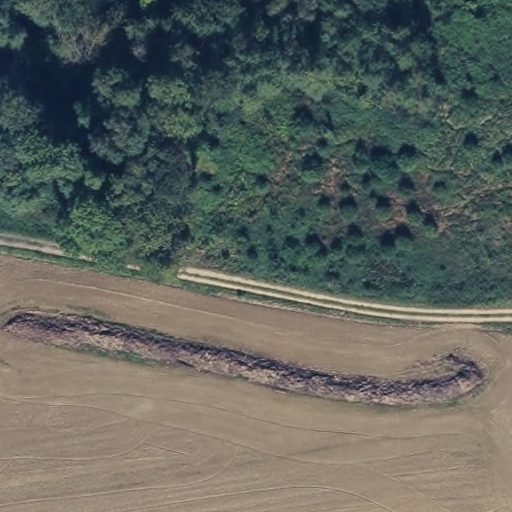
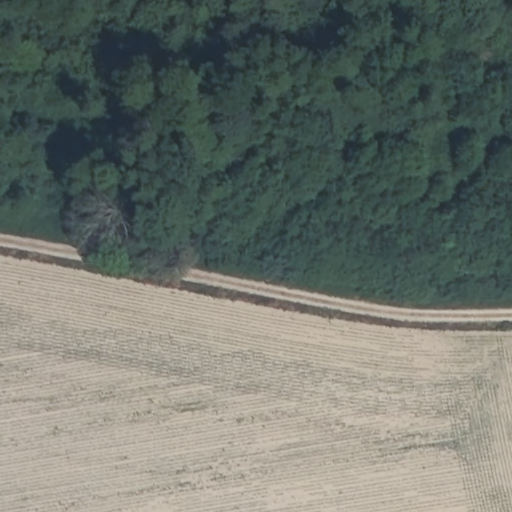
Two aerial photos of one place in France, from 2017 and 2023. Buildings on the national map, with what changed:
[]

